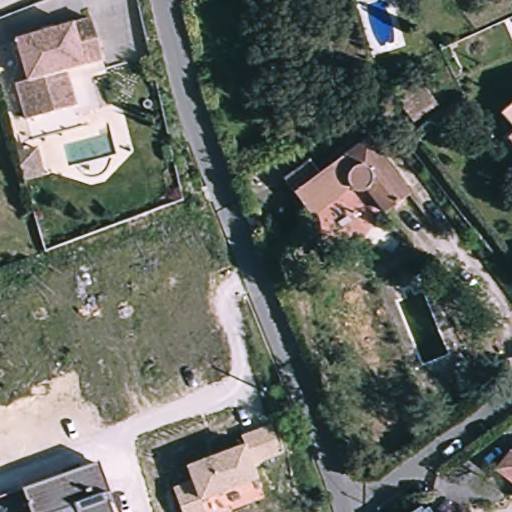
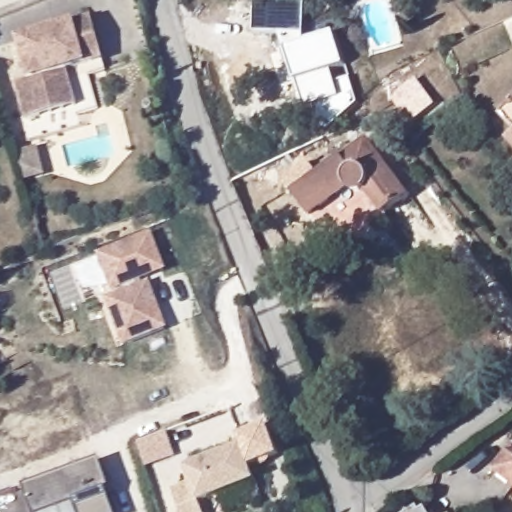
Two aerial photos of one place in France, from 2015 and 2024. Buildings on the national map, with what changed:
new [(348,66),(361,103),(333,129),(321,106),(307,108),(304,110),(294,81),(292,82),(281,50),(285,49),(279,32),(254,31),(254,0),(305,0),(303,42),(337,31),(348,66)]
unchanged [(45,116),(31,121),(20,85),(33,81),(21,41),(94,20),(105,59),(70,70),(81,106),(45,116)]
unchanged [(394,96),(418,80),(436,105),(413,121),(394,96)]
unchanged [(512,102),(512,123),(502,111),(512,102)]
unchanged [(384,211),(366,188),(364,189),(359,190),(353,190),(348,187),(312,213),(285,177),(308,160),(318,174),(338,159),(334,154),(340,149),(344,155),(367,138),(408,193),(384,211)]
new [(37,149),(45,177),(24,184),(15,155),(37,149)]
new [(165,274),(148,280),(168,332),(122,348),(104,301),(112,298),(96,255),(152,235),(165,274)]
unchanged [(190,465),(247,448),(245,439),(273,430),(281,459),(253,467),(257,481),(199,498),(203,512),(188,512),(180,484),(194,479),(190,465)]
unchanged [(495,465),(508,446),(512,445),(512,478),(495,465)]
unchanged [(115,512),(79,512),(76,503),(42,512),(37,512),(34,504),(31,504),(29,498),(32,496),(29,486),(102,465),(115,512)]

